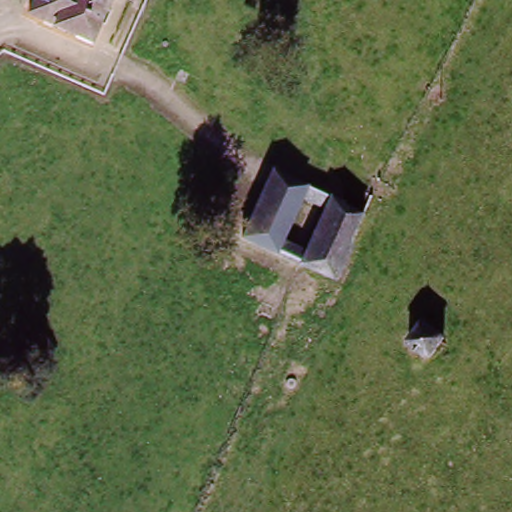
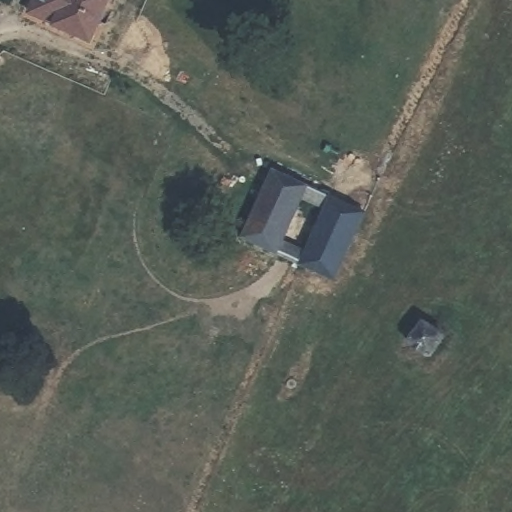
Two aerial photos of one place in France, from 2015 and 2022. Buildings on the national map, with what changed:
unchanged [(32,0),(91,0),(75,39),(25,18),(32,0)]
unchanged [(246,239),(277,173),(334,199),(305,264),(246,239)]
unchanged [(366,213),(335,278),(305,264),(334,199),(366,213)]
unchanged [(424,317),(450,336),(429,363),(404,343),(424,317)]

